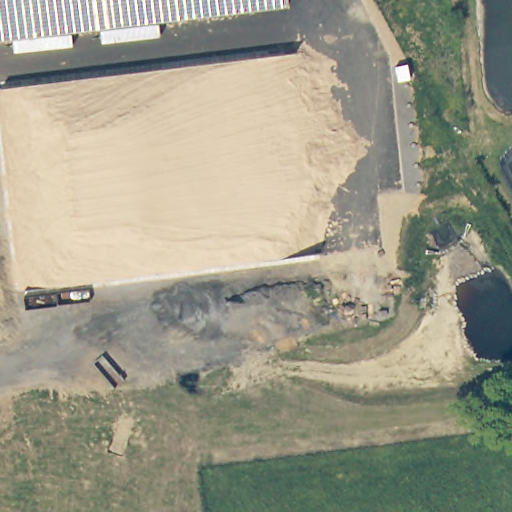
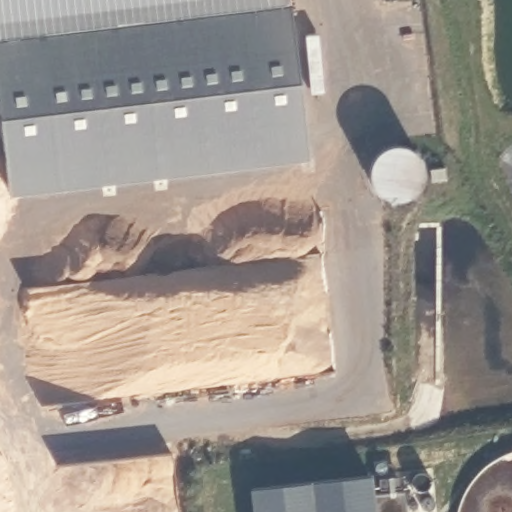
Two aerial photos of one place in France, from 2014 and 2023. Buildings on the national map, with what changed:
unchanged [(0,34),(0,0),(290,0),(290,3),(0,34)]
new [(0,123),(0,34),(290,3),(308,158),(9,195),(0,123)]

